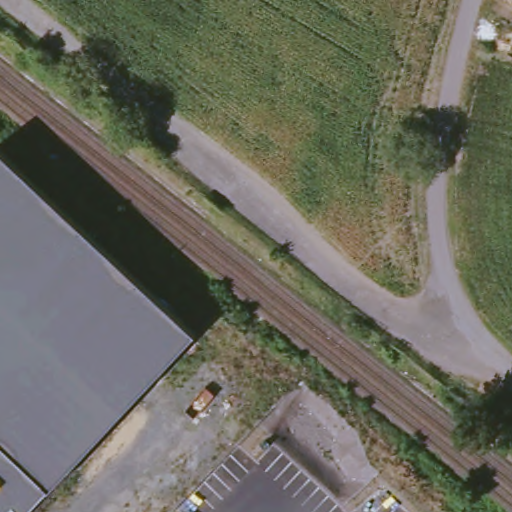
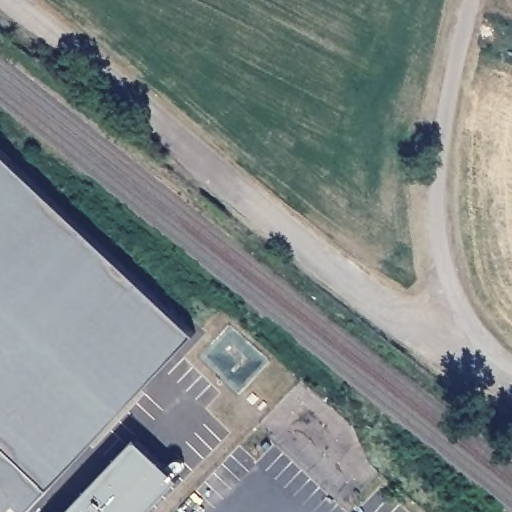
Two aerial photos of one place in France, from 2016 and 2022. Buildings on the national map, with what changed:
unchanged [(25,512),(0,512),(0,148),(194,329),(50,485),(25,512)]
new [(136,440),(178,480),(148,512),(68,512),(136,440)]

